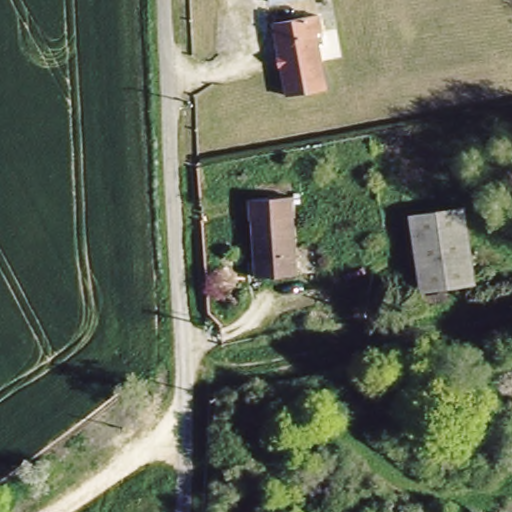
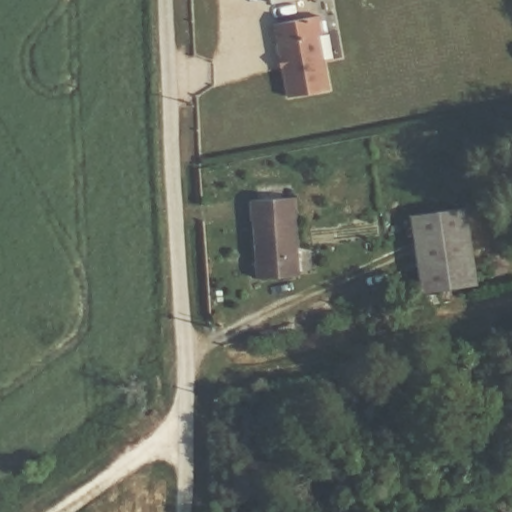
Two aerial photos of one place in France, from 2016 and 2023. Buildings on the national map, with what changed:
unchanged [(266,0),(276,0),(267,2),(266,0)]
unchanged [(325,16),(327,31),(313,33),(321,85),(315,85),(318,98),(284,100),(272,23),(325,16)]
unchanged [(292,199),(295,275),(260,279),(257,202),(292,199)]
unchanged [(465,211),(474,284),(424,292),(410,217),(465,211)]

